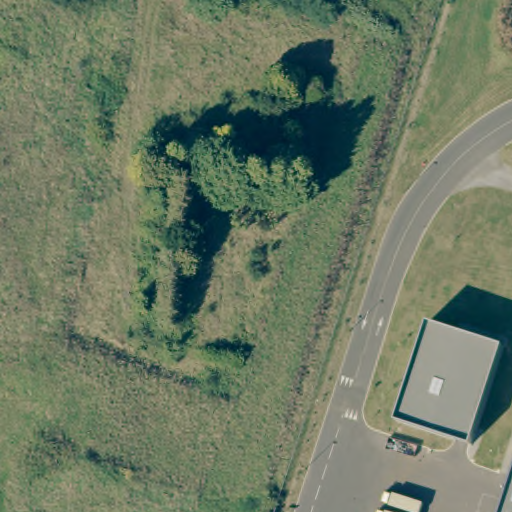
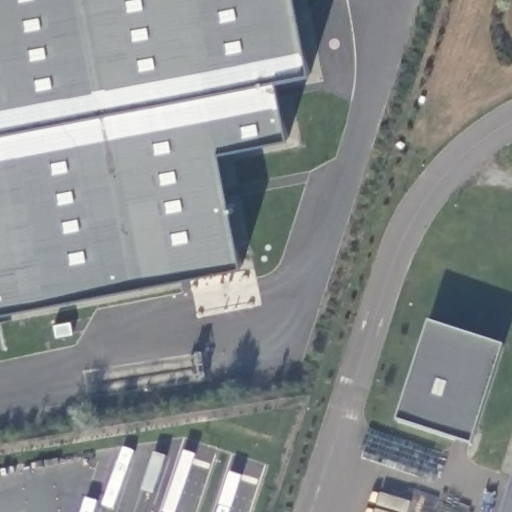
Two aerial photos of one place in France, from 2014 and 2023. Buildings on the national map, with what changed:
new [(275,79),(286,136),(217,150),(241,265),(0,313),(0,0),(295,0),(310,71),(275,79)]
demolished [(512,213),(512,266),(509,266),(512,213)]
unchanged [(430,323),(503,348),(470,446),(396,422),(430,323)]
new [(3,346),(0,346),(0,333),(3,346)]
unchanged [(512,512),(506,512),(512,493),(512,512)]

